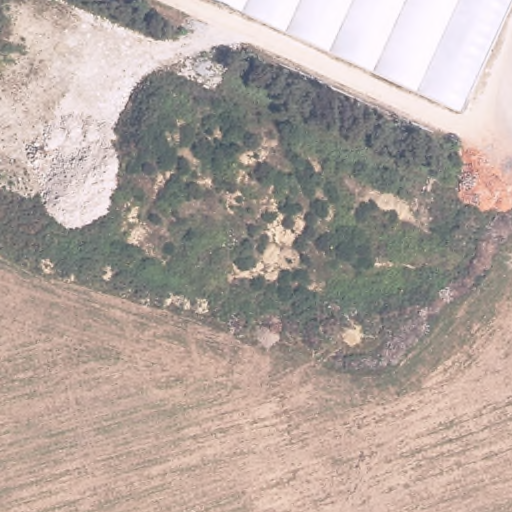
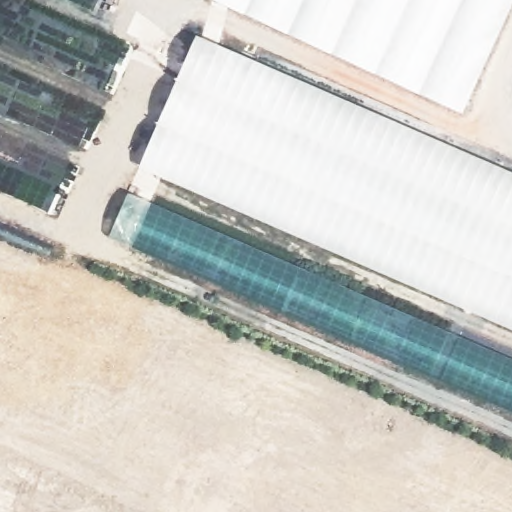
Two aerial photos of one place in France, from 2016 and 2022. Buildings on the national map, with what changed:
unchanged [(512,4),(462,117),(212,0),(512,0),(512,4)]
new [(196,36),(512,173),(512,330),(138,168),(196,36)]
new [(512,360),(512,412),(107,237),(128,194),(512,360)]

